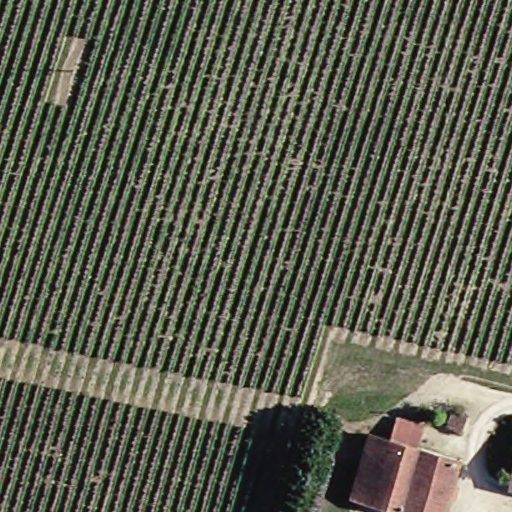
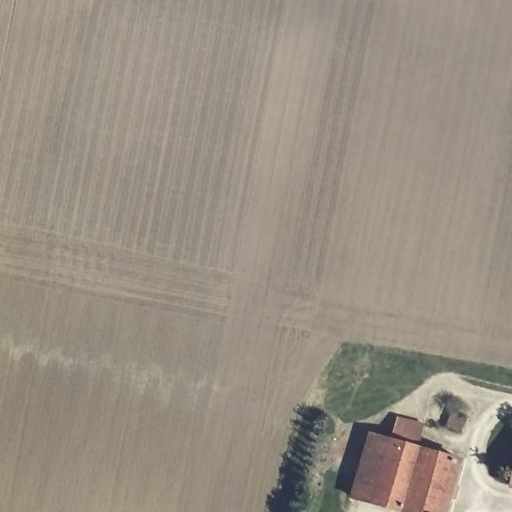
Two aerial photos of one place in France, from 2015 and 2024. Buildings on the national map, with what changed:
unchanged [(458,416),(471,420),(466,436),(452,430),(458,416)]
unchanged [(455,463),(441,512),(391,512),(369,506),(345,500),(362,438),(385,445),(391,421),(417,428),(410,451),(431,457),(455,463)]
unchanged [(512,440),(512,490),(501,487),(512,440)]

